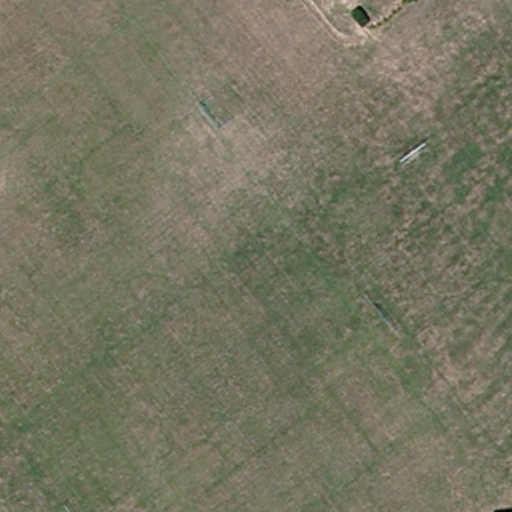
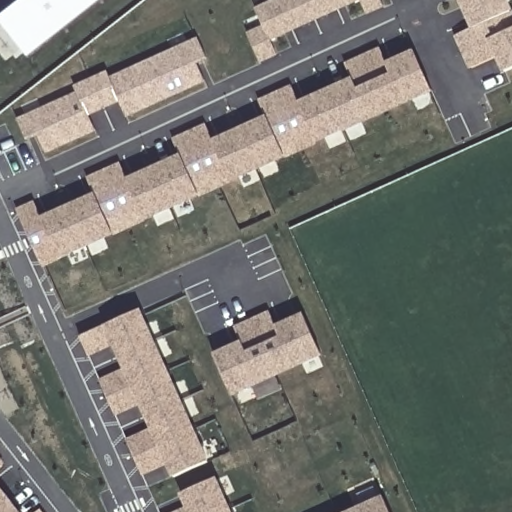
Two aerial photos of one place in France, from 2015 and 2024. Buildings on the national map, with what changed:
new [(30,54),(0,21),(0,14),(18,0),(100,0),(30,54)]
new [(381,6),(365,14),(358,1),(270,42),(276,55),(260,63),(250,34),(263,28),(255,9),(276,0),(378,0),(381,6)]
new [(512,19),(512,69),(504,73),(497,57),(470,69),(455,37),(471,29),(458,0),(503,0),(508,13),(511,19),(512,19)]
new [(76,92),(74,88),(106,73),(109,77),(186,42),(187,45),(198,40),(205,57),(194,62),(203,83),(126,117),(120,102),(87,116),(94,132),(46,153),(39,137),(31,141),(20,117),(76,92)]
new [(20,217),(36,209),(40,217),(95,193),(90,181),(98,177),(96,172),(111,165),(114,171),(120,168),(125,179),(180,154),(172,138),(196,127),(199,131),(205,128),(211,140),(266,115),(258,99),(289,85),(296,102),(351,77),(345,63),(379,48),(383,62),(413,49),(432,92),(42,267),(20,217)]
new [(165,462),(142,472),(128,440),(150,430),(138,403),(116,413),(101,380),(124,370),(111,343),(88,353),(80,336),(141,309),(210,461),(172,478),(165,462)]
new [(232,398),(212,353),(241,340),(237,331),(243,328),(241,323),(260,314),(262,320),(270,316),(273,325),(302,312),(322,357),(232,398)]
new [(179,494),(217,477),(233,512),(180,512),(186,509),(179,494)]
new [(21,512),(0,512),(0,486),(21,512)]
new [(390,512),(344,512),(382,495),(390,512)]

